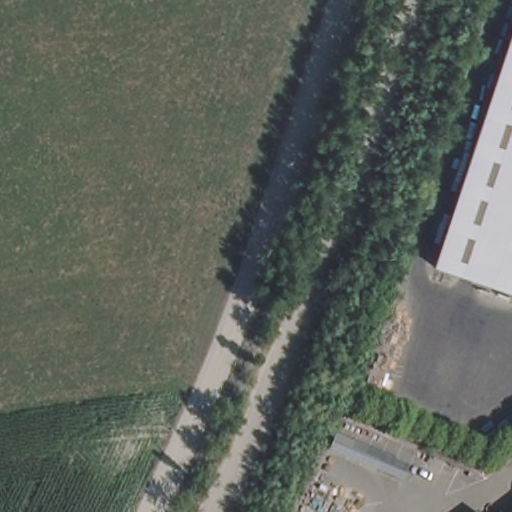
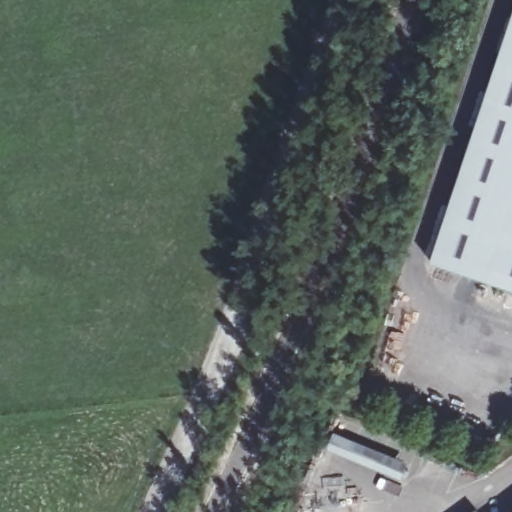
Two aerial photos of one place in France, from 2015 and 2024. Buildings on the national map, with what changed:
unchanged [(428,263),(512,13),(512,292),(428,263)]

